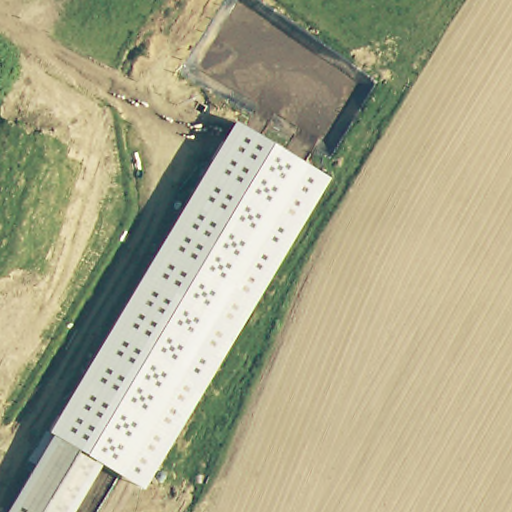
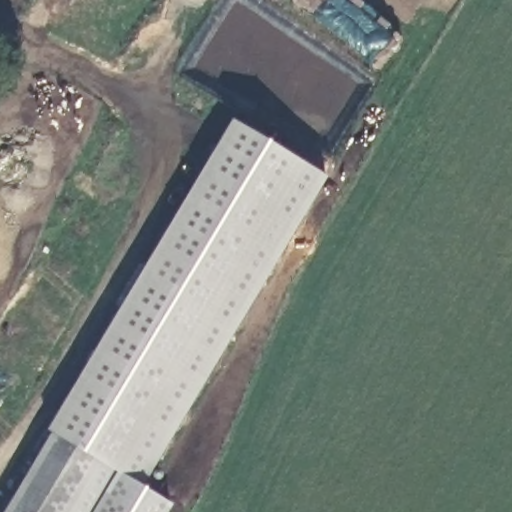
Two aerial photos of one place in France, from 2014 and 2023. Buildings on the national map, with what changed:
unchanged [(48,431),(234,119),(328,177),(142,488),(101,464),(72,512),(5,512),(52,433),(48,431)]
new [(142,488),(145,485),(172,504),(168,512),(72,512),(101,464),(142,488)]

